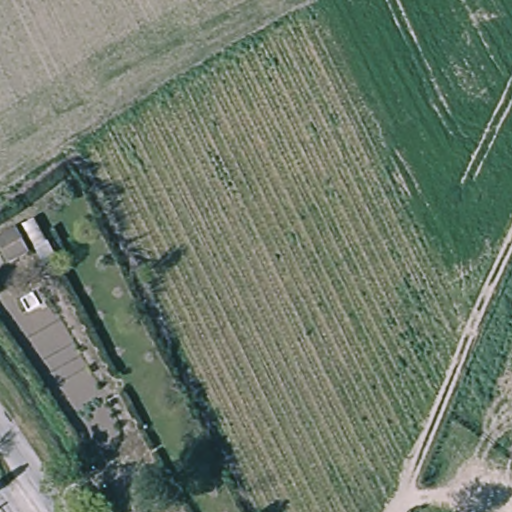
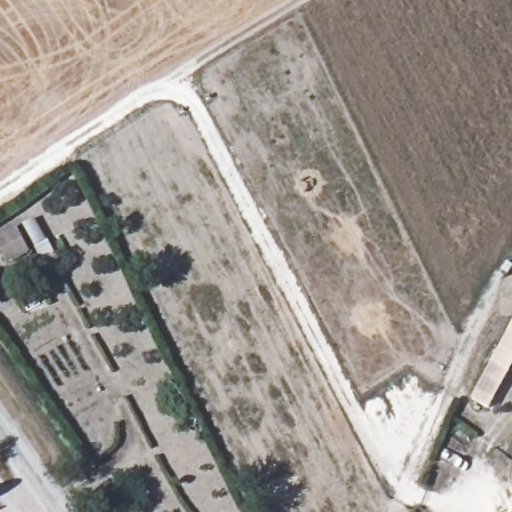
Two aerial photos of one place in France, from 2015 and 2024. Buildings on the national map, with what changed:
unchanged [(13,228),(27,253),(6,264),(0,253),(0,235),(13,228)]
new [(471,399),(507,331),(512,334),(512,362),(488,408),(471,399)]
unchanged [(141,512),(130,512),(140,509),(141,512)]

